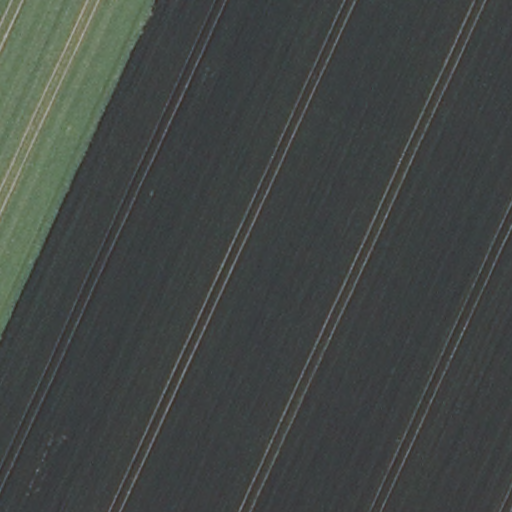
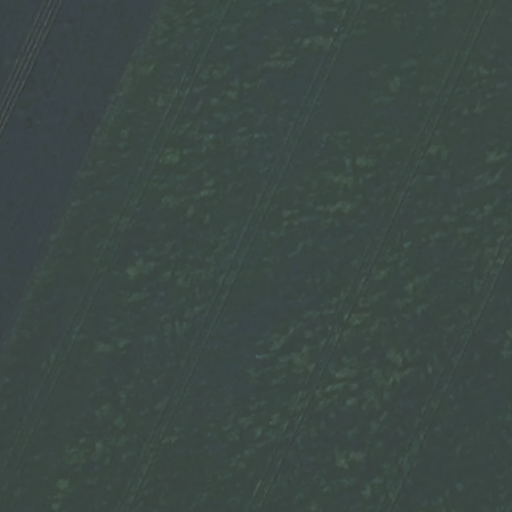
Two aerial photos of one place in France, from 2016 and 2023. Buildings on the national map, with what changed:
[]

